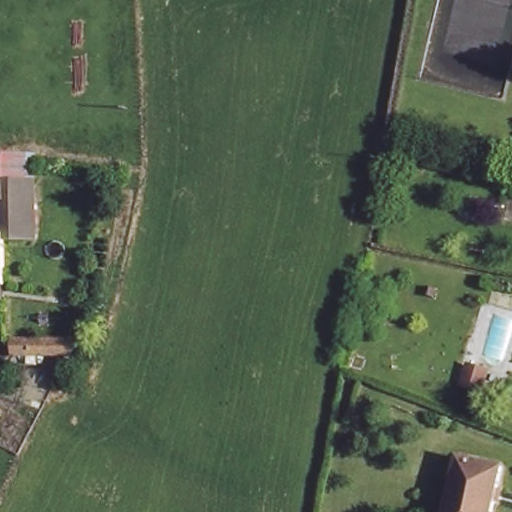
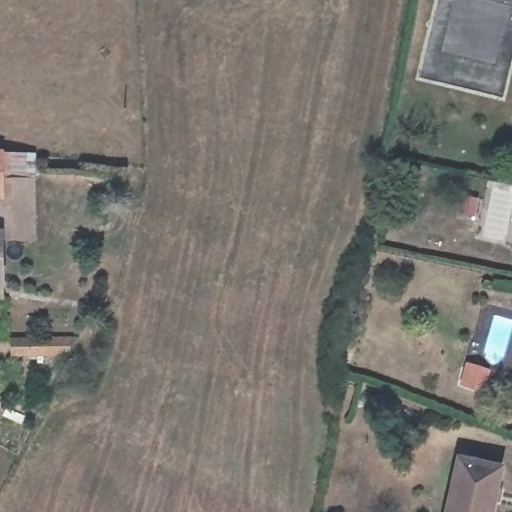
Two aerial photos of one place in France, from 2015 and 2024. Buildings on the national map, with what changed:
unchanged [(0,302),(0,238),(3,237),(1,197),(0,197),(0,160),(26,162),(26,185),(36,186),(38,244),(4,246),(5,290),(5,302),(0,302)]
unchanged [(21,356),(21,340),(84,340),(77,355),(21,356)]
unchanged [(460,455),(501,465),(491,512),(446,512),(460,455)]

